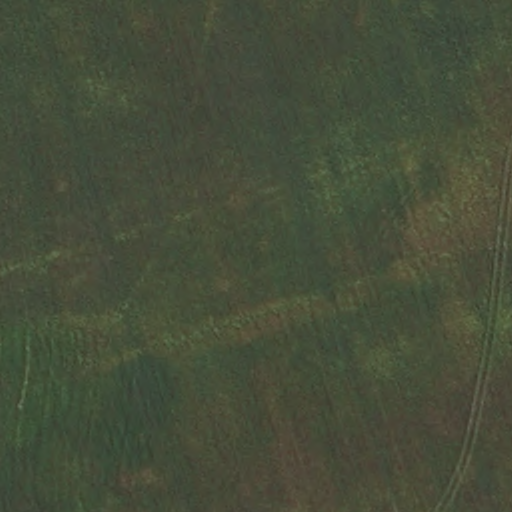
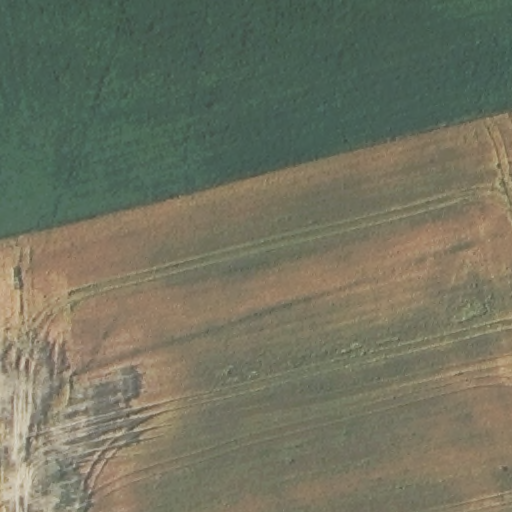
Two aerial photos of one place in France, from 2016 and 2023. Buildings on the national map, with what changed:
[]

